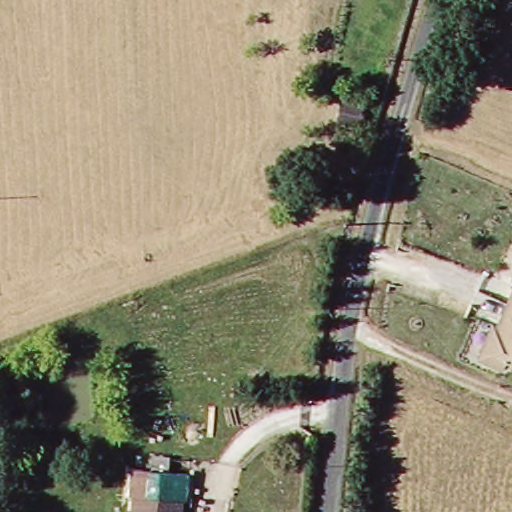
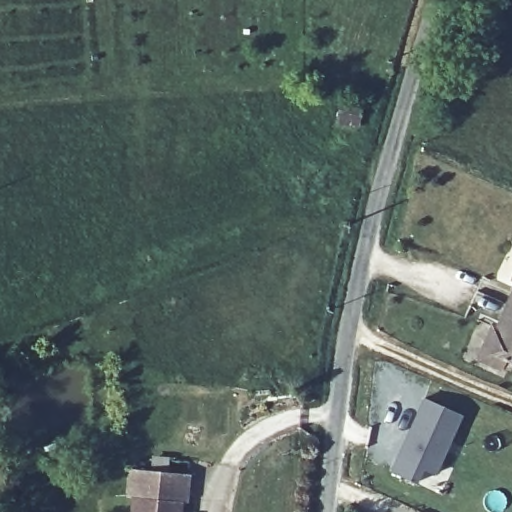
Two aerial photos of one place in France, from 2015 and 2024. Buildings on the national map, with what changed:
unchanged [(512,297),(512,305),(509,304),(512,297)]
unchanged [(505,323),(502,321),(509,304),(512,305),(512,360),(507,358),(502,368),(480,358),(494,325),(502,329),(505,323)]
new [(437,474),(422,470),(416,483),(390,471),(421,396),(463,414),(437,474)]
unchanged [(132,497),(127,497),(131,470),(188,478),(185,504),(181,504),(180,512),(129,512),(132,497)]

